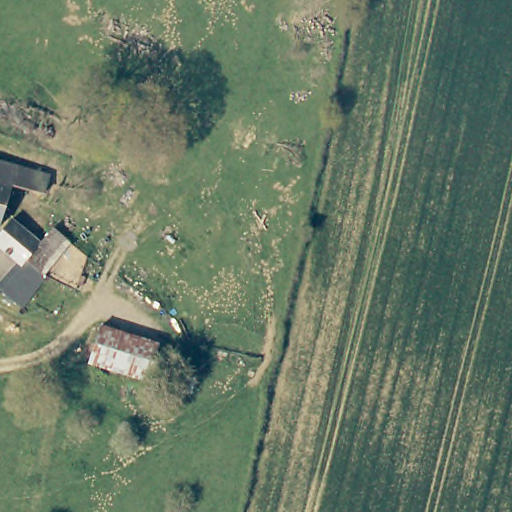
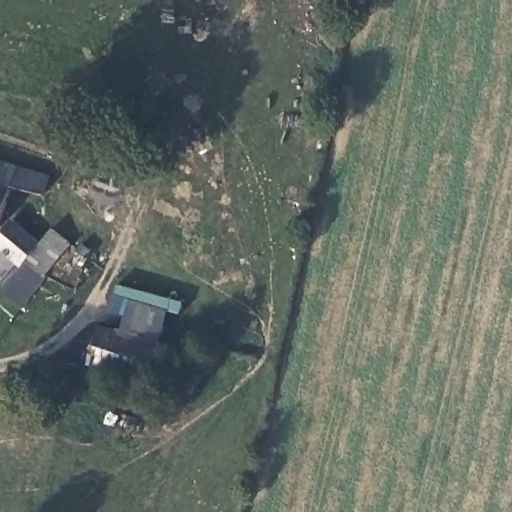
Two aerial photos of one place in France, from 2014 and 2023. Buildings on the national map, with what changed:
unchanged [(44,194),(15,185),(3,226),(0,225),(0,160),(49,175),(44,194)]
unchanged [(56,226),(74,241),(46,273),(30,259),(23,265),(0,246),(0,236),(15,220),(41,241),(56,226)]
unchanged [(160,344),(149,381),(93,365),(105,329),(160,344)]

